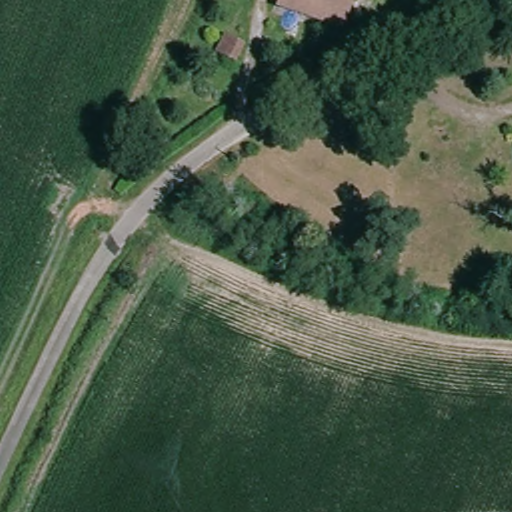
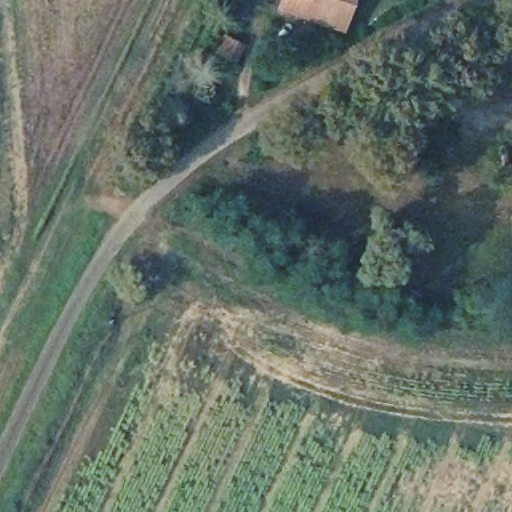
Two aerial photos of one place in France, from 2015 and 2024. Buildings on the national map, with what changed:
unchanged [(328,24),(280,7),(282,0),(354,0),(345,29),(328,24)]
unchanged [(236,61),(216,51),(224,34),(245,44),(236,61)]

